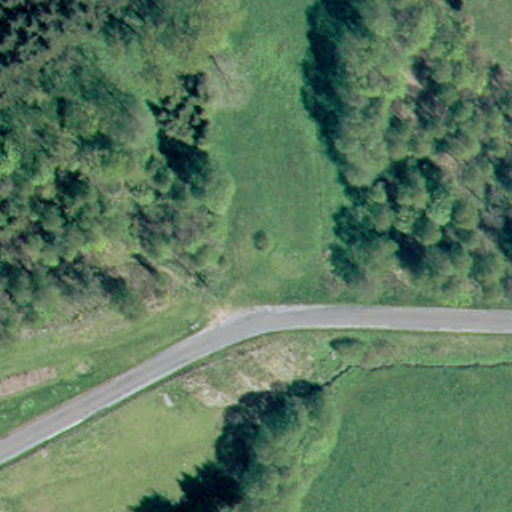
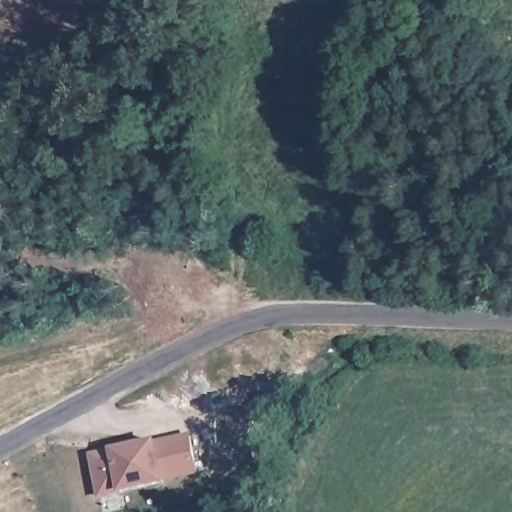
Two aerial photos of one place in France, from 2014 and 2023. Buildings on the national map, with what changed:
new [(113,447),(115,448),(157,438),(192,432),(202,474),(167,480),(168,484),(122,495),(122,493),(100,499),(90,453),(113,447)]

